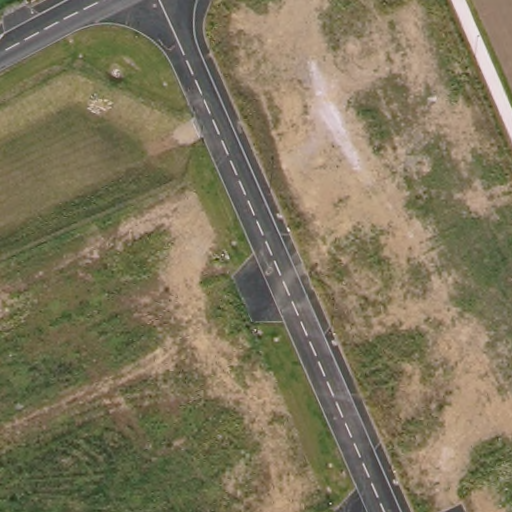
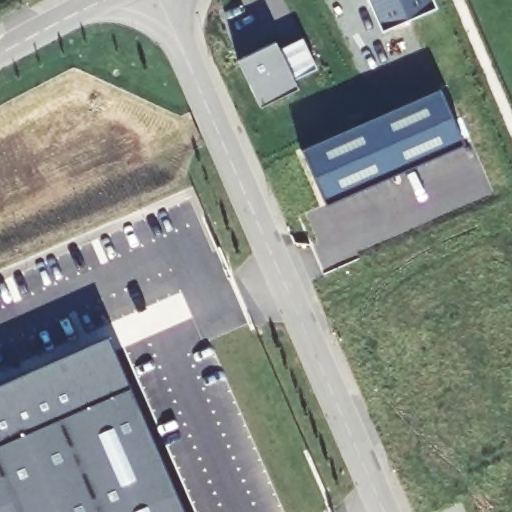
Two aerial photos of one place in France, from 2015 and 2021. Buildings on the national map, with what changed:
new [(380,32),(366,0),(431,0),(435,9),(380,32)]
new [(272,39),(276,47),(300,36),(315,67),(291,79),(295,86),(257,104),(235,58),(272,39)]
new [(438,89),(463,146),(323,206),(298,150),(438,89)]
new [(60,361),(67,377),(116,356),(184,512),(0,512),(0,387),(60,361)]

